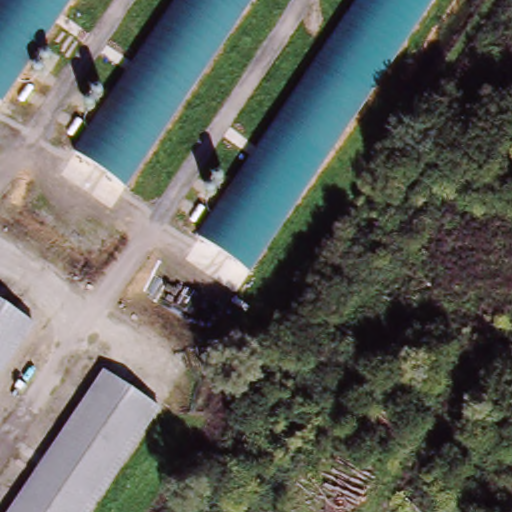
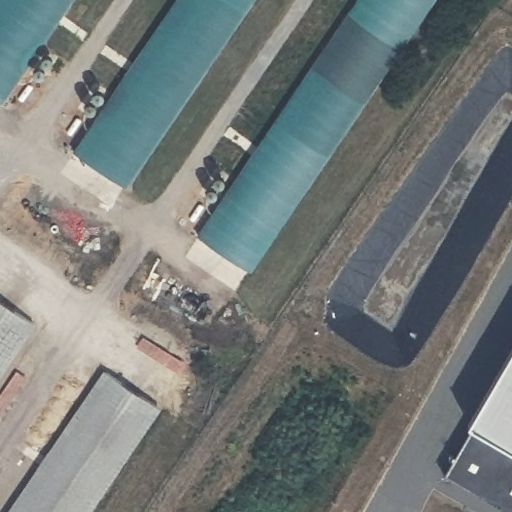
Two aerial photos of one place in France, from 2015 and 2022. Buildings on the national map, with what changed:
unchanged [(42,46),(56,60),(40,80),(26,70),(2,103),(0,102),(0,0),(74,0),(42,46)]
unchanged [(127,191),(72,149),(95,117),(81,107),(95,84),(110,95),(175,0),(256,0),(127,191)]
unchanged [(251,275),(197,240),(217,207),(200,195),(217,169),(234,181),(357,0),(436,0),(251,275)]
unchanged [(0,371),(0,303),(32,323),(0,371)]
new [(509,512),(443,475),(472,421),(468,418),(512,343),(512,512),(509,512)]
unchanged [(163,403),(90,512),(18,512),(113,371),(163,403)]

